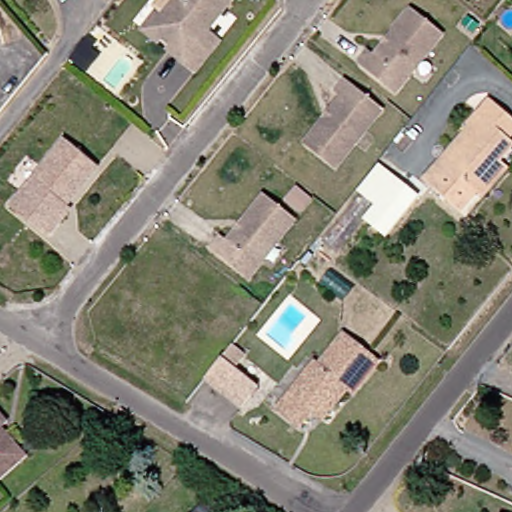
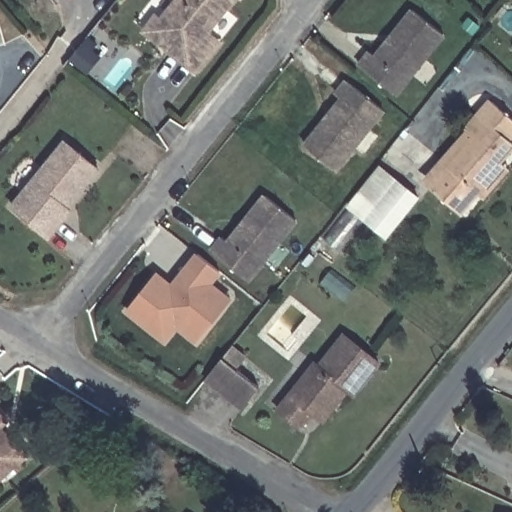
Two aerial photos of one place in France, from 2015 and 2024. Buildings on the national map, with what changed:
unchanged [(154,31),(180,0),(236,0),(226,11),(239,21),(219,45),(196,73),(183,62),(147,33),(151,28),(154,31)]
unchanged [(400,89),(364,60),(374,46),(380,51),(412,11),(442,36),(400,89)]
unchanged [(387,106),(339,167),(308,143),(346,96),(340,91),(350,78),(387,106)]
unchanged [(473,193),(468,188),(451,208),(419,181),(414,176),(471,111),(483,96),(511,121),(499,135),(505,140),(491,156),(499,164),(473,193)]
unchanged [(102,166),(76,198),(72,195),(67,202),(75,208),(53,234),(16,203),(69,138),(102,166)]
unchanged [(360,191),(380,166),(397,181),(377,205),(360,191)]
unchanged [(299,217),(251,277),(215,248),(226,235),(232,239),(269,192),(299,217)]
new [(149,330),(129,314),(158,278),(172,290),(179,282),(198,257),(220,274),(209,287),(229,302),(197,343),(177,327),(165,342),(149,330)]
unchanged [(307,416),(302,413),(290,428),(267,410),(305,363),(309,366),(334,335),(369,362),(343,395),(337,390),(312,421),(307,416)]
unchanged [(235,357),(226,369),(249,387),(232,409),(195,379),(222,346),(235,357)]
unchanged [(18,457),(12,462),(0,472),(0,436),(18,457)]

